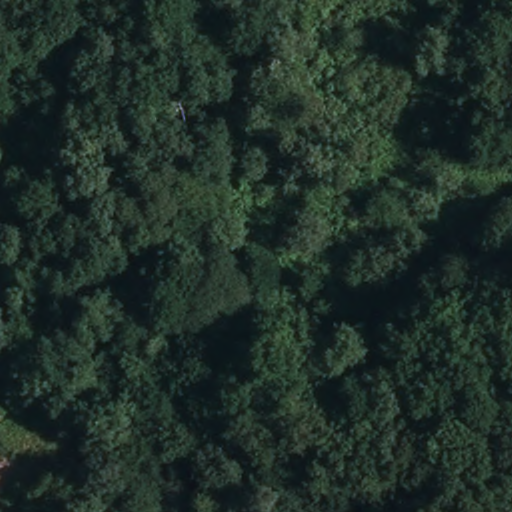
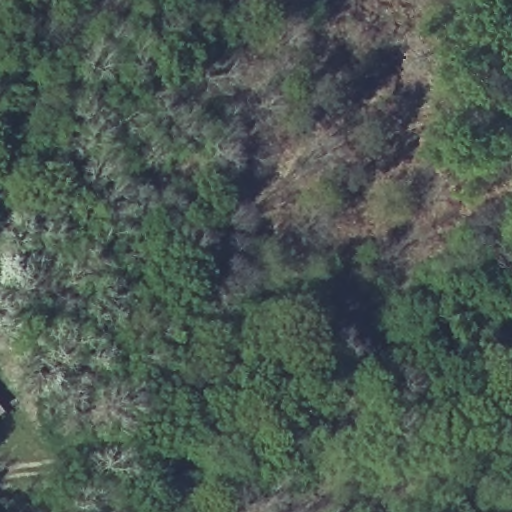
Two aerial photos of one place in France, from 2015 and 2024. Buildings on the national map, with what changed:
unchanged [(0,419),(0,413),(3,417),(0,419)]

